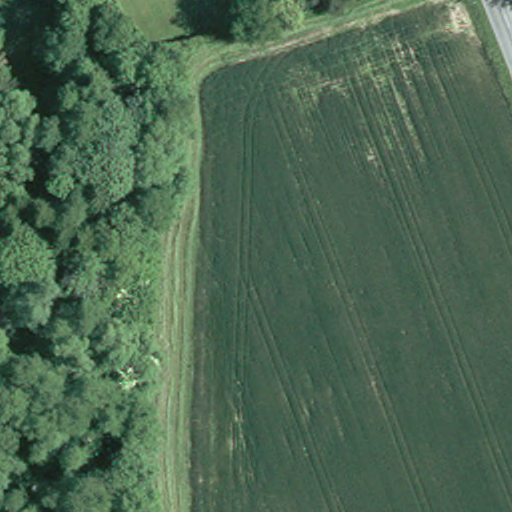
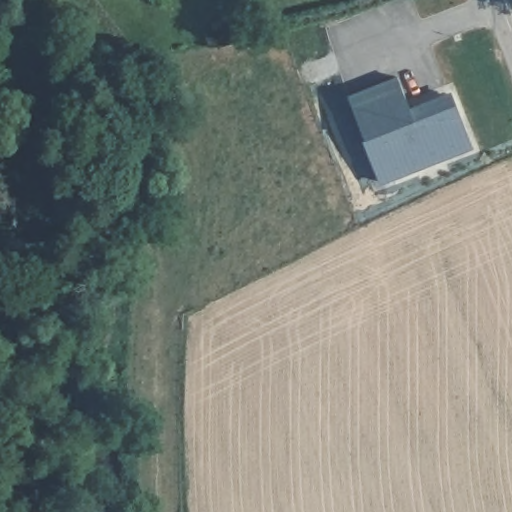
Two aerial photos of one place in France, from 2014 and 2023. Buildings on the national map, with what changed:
new [(397,76),(409,108),(450,91),(473,150),(380,187),(347,95),(397,76)]

